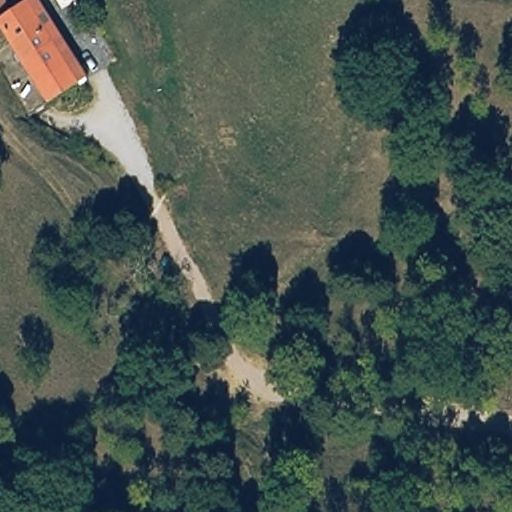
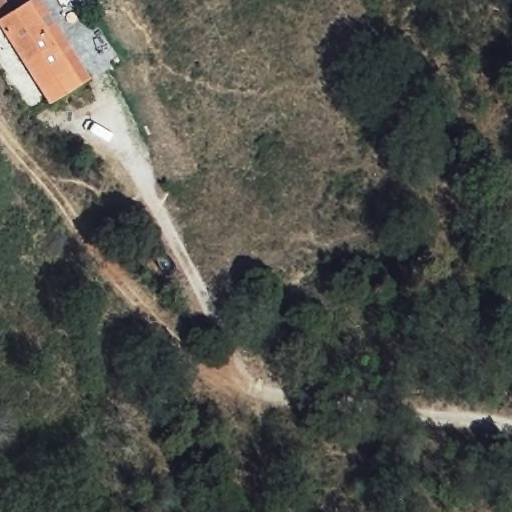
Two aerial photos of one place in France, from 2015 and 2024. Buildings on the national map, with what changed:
unchanged [(51,107),(0,22),(0,19),(40,0),(88,81),(51,107)]

